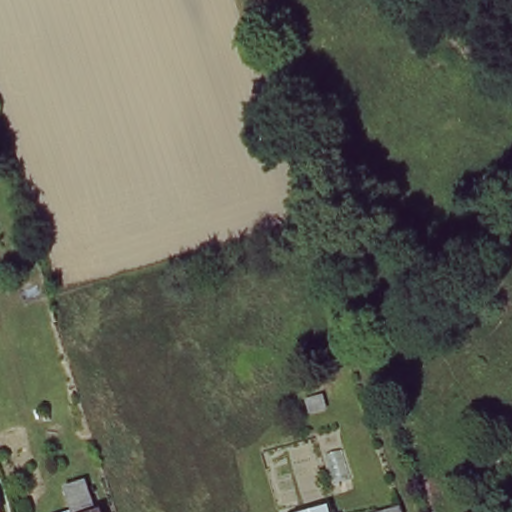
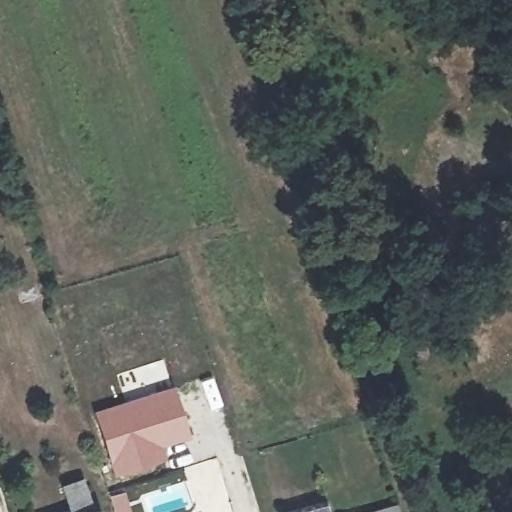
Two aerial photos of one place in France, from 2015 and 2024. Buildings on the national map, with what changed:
new [(174,385),(192,439),(164,448),(167,459),(114,478),(93,411),(174,385)]
unchanged [(93,512),(71,512),(62,484),(82,479),(93,512)]
new [(124,490),(132,512),(114,512),(108,495),(124,490)]
new [(186,511),(187,512),(182,512),(186,511)]

